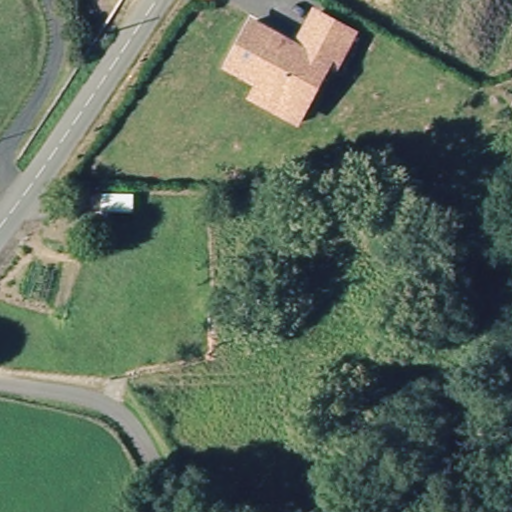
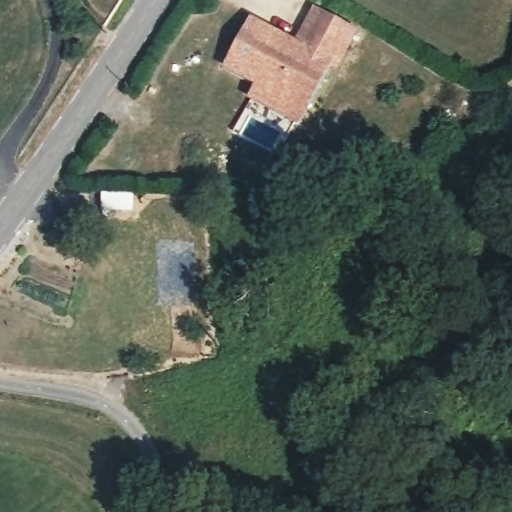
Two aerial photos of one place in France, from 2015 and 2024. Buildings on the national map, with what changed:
unchanged [(257,96),(264,83),(233,65),(259,21),(307,49),(327,15),(360,34),(362,35),(341,70),(333,65),(308,108),(300,121),(257,96)]
unchanged [(112,199),(152,200),(151,217),(113,215),(112,199)]

